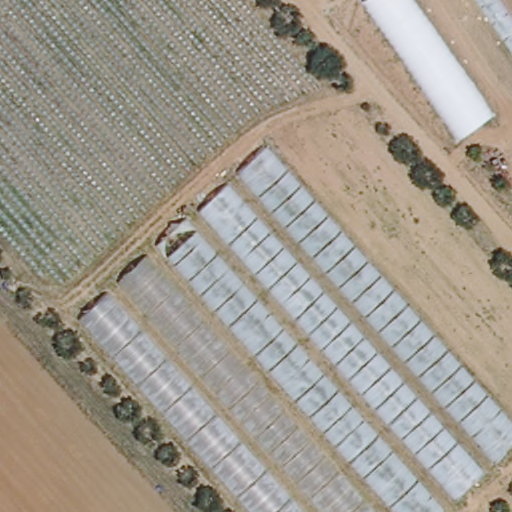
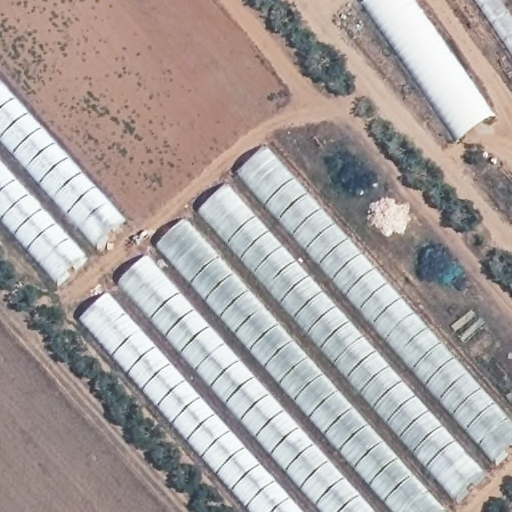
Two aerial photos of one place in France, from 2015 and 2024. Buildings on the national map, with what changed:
new [(493,118),(461,141),(362,3),(365,0),(411,0),(493,118)]
unchanged [(474,0),(512,0),(512,55),(474,0)]
new [(121,223),(55,281),(0,220),(0,84),(121,223)]
unchanged [(512,424),(512,445),(443,512),(252,512),(80,320),(266,149),(512,424)]

